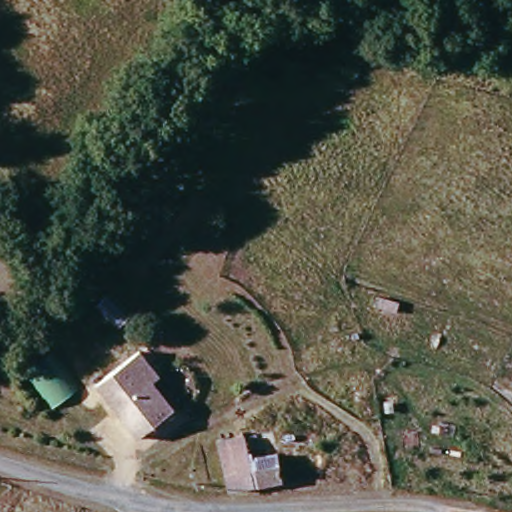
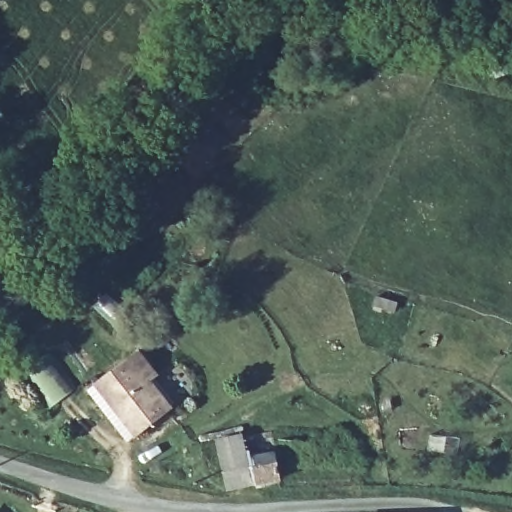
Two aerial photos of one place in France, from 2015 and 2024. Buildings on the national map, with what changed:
unchanged [(92,384),(137,350),(157,376),(150,382),(171,410),(133,438),(92,384)]
unchanged [(241,437),(273,433),(282,479),(265,481),(239,486),(225,487),(216,439),(241,437)]

